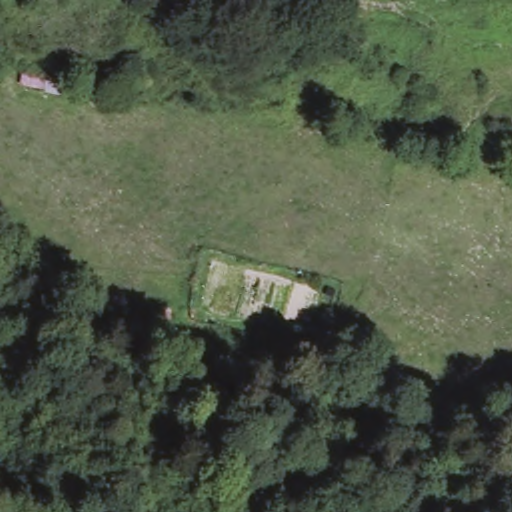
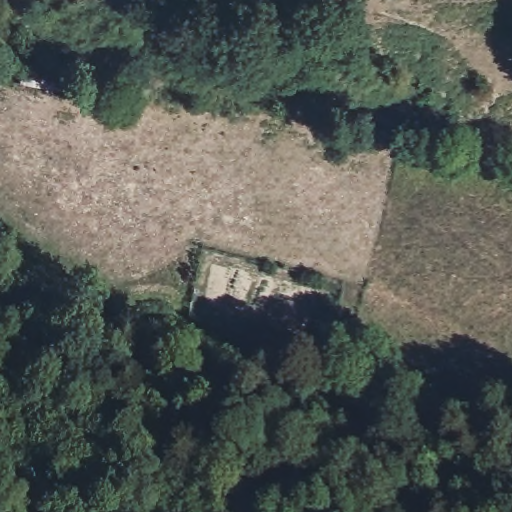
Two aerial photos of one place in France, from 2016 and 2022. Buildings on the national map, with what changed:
[]

